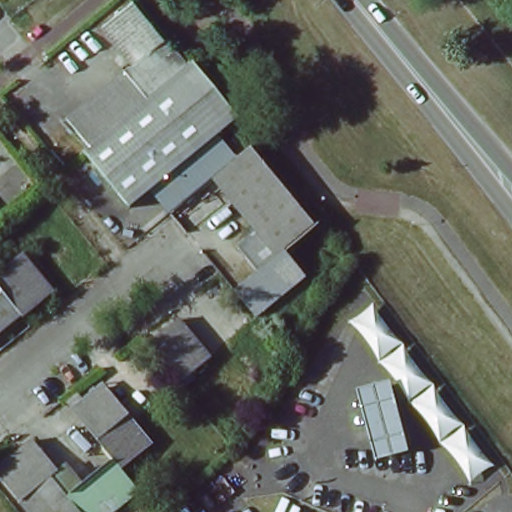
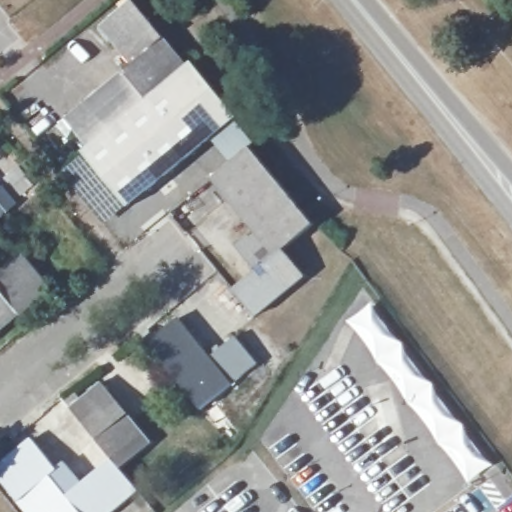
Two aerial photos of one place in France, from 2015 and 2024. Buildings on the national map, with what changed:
unchanged [(81,152),(86,145),(64,116),(128,64),(98,25),(128,0),(132,0),(243,119),(220,136),(152,191),(130,210),(81,152)]
unchanged [(237,156),(208,180),(167,214),(152,191),(220,136),(237,156)]
unchanged [(313,229),(282,255),(275,260),(256,235),(213,182),(252,150),(313,229)]
unchanged [(265,268),(245,244),(256,235),(275,260),(282,255),(302,280),(253,320),(232,295),(265,268)]
unchanged [(0,269),(22,251),(54,291),(22,316),(0,288),(0,269)]
unchanged [(0,334),(0,288),(22,316),(0,334)]
unchanged [(146,344),(177,318),(210,357),(178,382),(146,344)]
new [(210,357),(236,337),(257,365),(200,409),(178,382),(210,357)]
unchanged [(68,408),(102,380),(152,442),(120,470),(111,459),(68,408)]
unchanged [(407,450),(374,458),(355,389),(389,380),(407,450)]
unchanged [(138,491),(112,512),(26,512),(0,480),(0,466),(32,438),(57,468),(65,461),(82,482),(111,459),(120,470),(138,491)]

